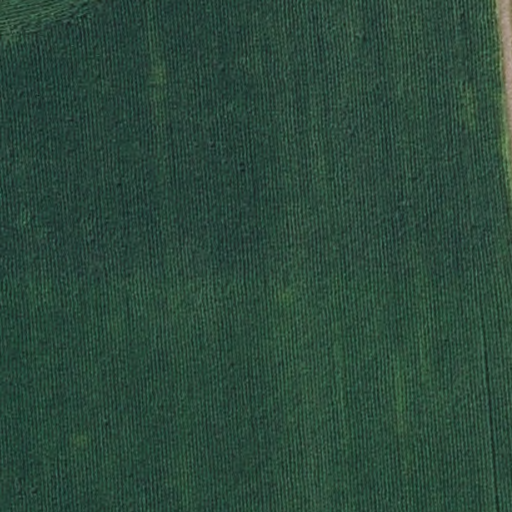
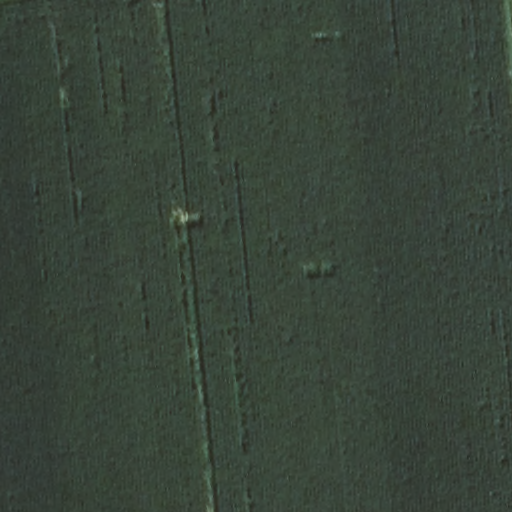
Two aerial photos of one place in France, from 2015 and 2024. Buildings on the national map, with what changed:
[]

